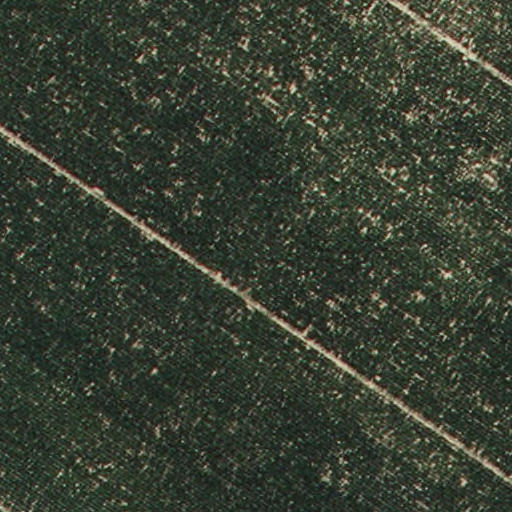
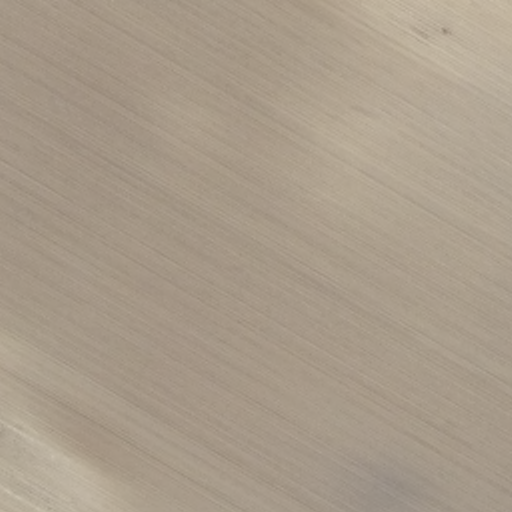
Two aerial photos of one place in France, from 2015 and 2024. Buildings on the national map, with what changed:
[]

